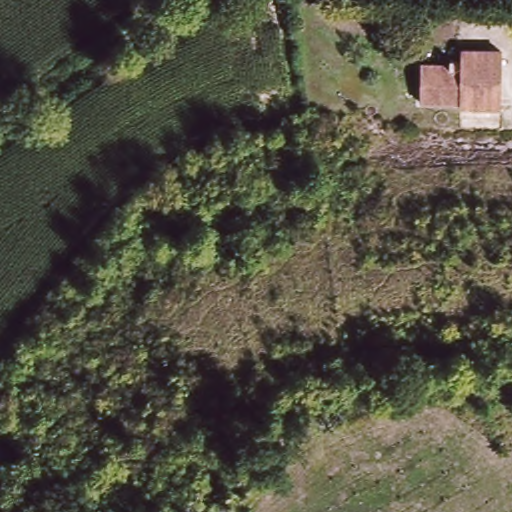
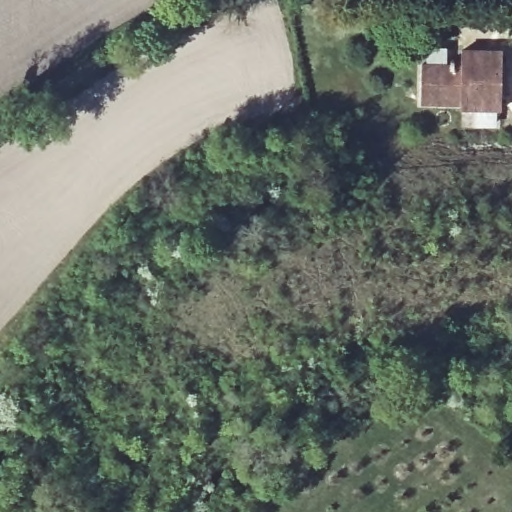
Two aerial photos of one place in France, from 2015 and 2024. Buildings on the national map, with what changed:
unchanged [(465,52),(505,52),(506,117),(469,118),(469,111),(424,110),(426,67),(464,68),(465,52)]

